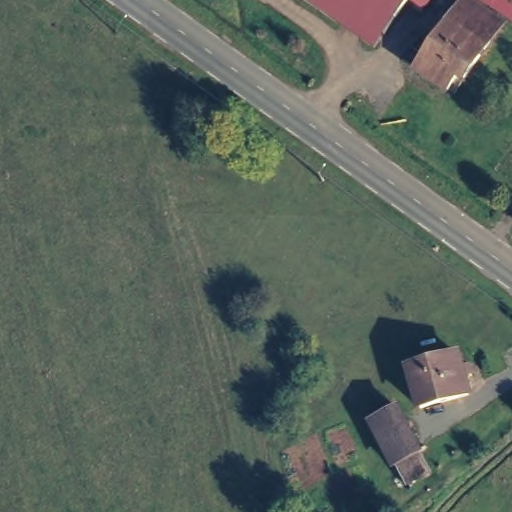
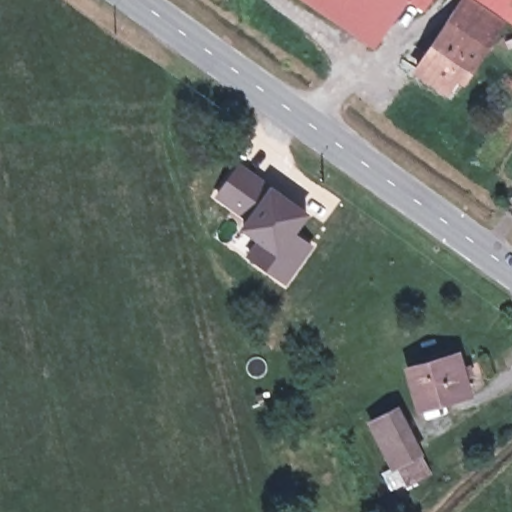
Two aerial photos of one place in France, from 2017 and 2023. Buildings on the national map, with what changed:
unchanged [(294,0),(408,0),(372,49),(294,0)]
unchanged [(408,71),(457,0),(483,0),(505,16),(450,96),(408,71)]
unchanged [(505,16),(483,0),(512,0),(512,21),(505,16)]
new [(243,225),(250,217),(217,193),(239,163),(273,188),(288,199),(307,212),(293,231),(311,244),(285,280),(266,267),(249,254),(260,238),(243,225)]
unchanged [(457,352),(461,366),(467,364),(470,369),(463,371),(469,392),(419,406),(408,364),(457,352)]
unchanged [(376,421),(402,407),(424,451),(398,465),(376,421)]

